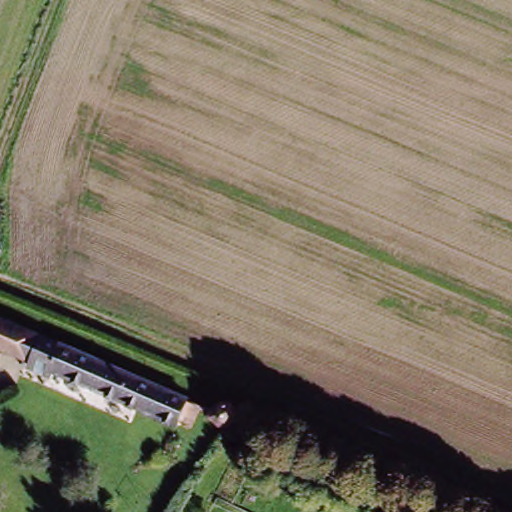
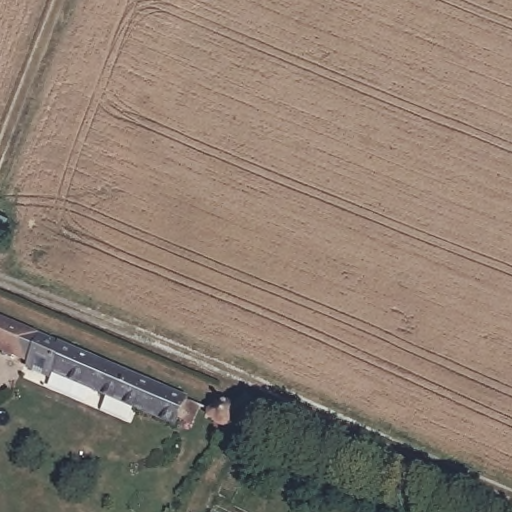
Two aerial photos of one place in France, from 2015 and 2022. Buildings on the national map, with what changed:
unchanged [(174,419),(171,425),(47,372),(45,378),(24,368),(26,363),(0,352),(0,322),(65,350),(65,351),(182,400),(194,406),(186,425),(174,419)]
unchanged [(238,417),(238,418),(237,420),(236,422),(236,423),(235,423),(235,424),(234,425),(233,425),(232,426),(231,427),(230,427),(229,427),(228,428),(227,428),(225,428),(224,428),(222,427),(221,427),(220,427),(220,426),(219,426),(218,426),(218,425),(217,425),(217,424),(216,424),(216,423),(215,422),(215,421),(214,420),(214,419),(213,418),(212,418),(211,418),(211,417),(210,417),(210,416),(209,415),(209,414),(209,413),(209,412),(210,412),(210,411),(211,411),(211,410),(212,410),(213,410),(214,410),(215,409),(216,408),(216,407),(217,407),(217,406),(218,405),(219,405),(220,404),(221,404),(222,403),(223,403),(224,403),(226,403),(228,403),(230,404),(231,404),(233,405),(234,406),(235,407),(235,408),(236,409),(237,410),(237,411),(238,412),(238,414),(238,415),(238,417)]

